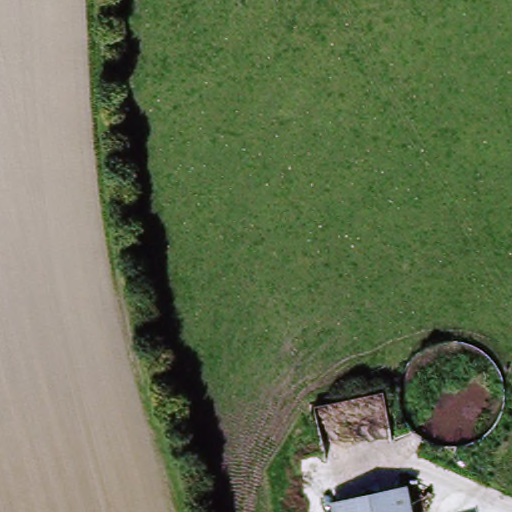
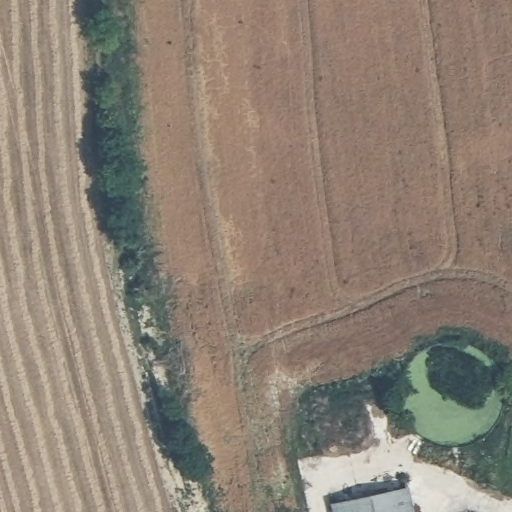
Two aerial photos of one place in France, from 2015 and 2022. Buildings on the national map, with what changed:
unchanged [(329,504),(406,490),(410,512),(330,512),(329,504)]

